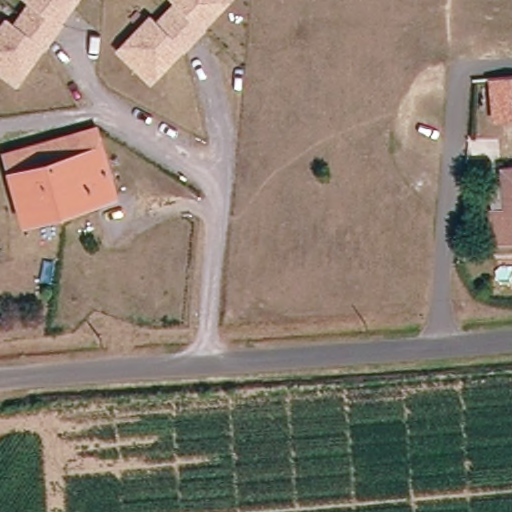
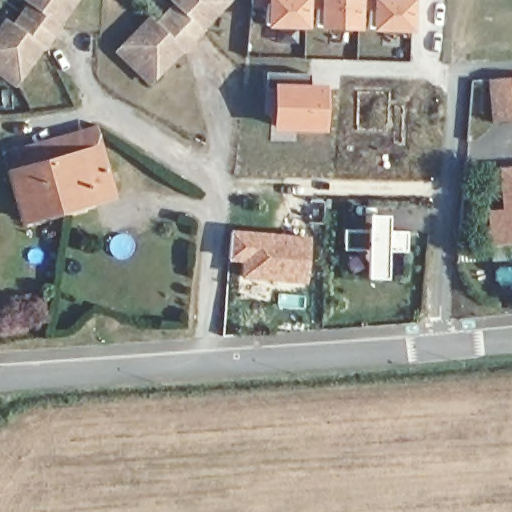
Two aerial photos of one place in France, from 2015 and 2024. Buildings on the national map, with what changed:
unchanged [(0,74),(0,29),(6,21),(14,27),(22,15),(30,3),(26,0),(75,0),(75,1),(59,23),(61,24),(52,37),(42,50),(41,48),(25,70),(15,85),(0,74)]
unchanged [(154,86),(121,57),(152,22),(158,28),(177,7),(171,1),(171,0),(229,0),(222,9),(204,29),(206,31),(185,54),(184,52),(166,73),(154,86)]
new [(416,31),(372,31),(372,12),(362,11),(361,30),(320,29),(320,10),(310,10),(308,30),(267,28),(267,8),(252,10),(252,0),(415,0),(416,31)]
unchanged [(487,80),(512,78),(512,123),(492,125),(487,80)]
new [(272,82),(325,86),(323,132),(271,132),(272,82)]
unchanged [(95,131),(100,150),(12,175),(6,155),(95,131)]
unchanged [(113,197),(25,221),(12,175),(100,150),(113,197)]
unchanged [(507,247),(490,248),(487,217),(502,216),(497,174),(512,172),(512,246),(507,247)]
new [(368,233),(368,217),(389,217),(389,232),(409,233),(408,254),(388,252),(387,278),(366,278),(367,251),(346,251),(346,231),(368,233)]
new [(312,237),(308,286),(241,280),(242,263),(230,262),(232,232),(312,237)]

